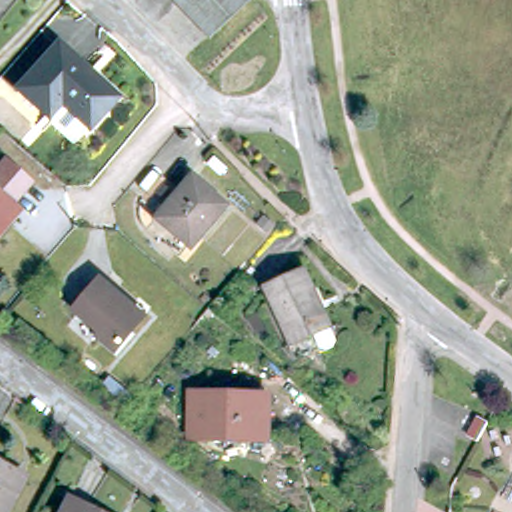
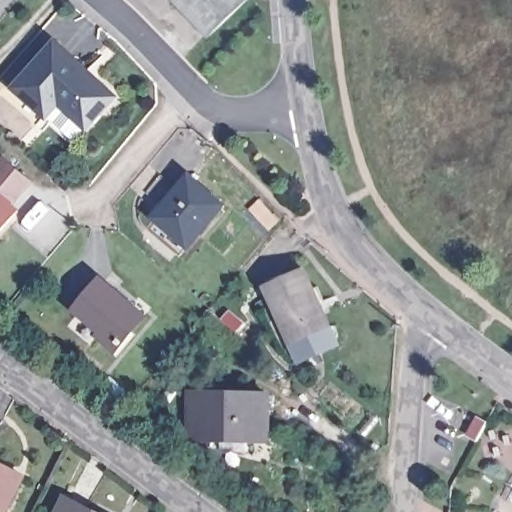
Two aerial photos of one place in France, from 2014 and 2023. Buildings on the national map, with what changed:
unchanged [(208,36),(175,0),(246,0),(208,36)]
unchanged [(50,113),(18,87),(58,40),(117,93),(90,124),(77,137),(50,113)]
unchanged [(218,206),(185,246),(152,219),(186,178),(218,206)]
unchanged [(0,226),(0,191),(17,205),(0,226)]
unchanged [(301,266),(335,334),(333,342),(322,346),(315,344),(309,331),(290,339),(263,283),(301,266)]
unchanged [(98,283),(140,317),(112,350),(97,338),(100,334),(74,312),(98,283)]
unchanged [(265,393),(265,438),(189,437),(189,392),(265,393)]
unchanged [(2,512),(0,512),(0,464),(21,475),(2,512)]
unchanged [(59,512),(68,493),(106,512),(59,512)]

